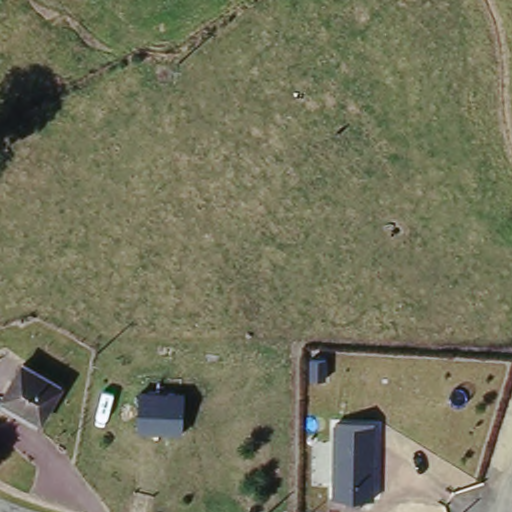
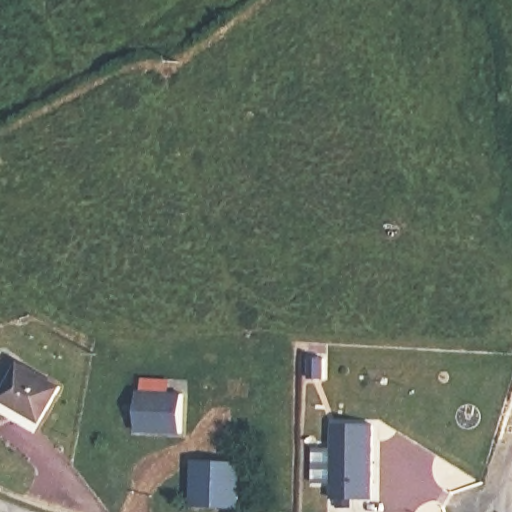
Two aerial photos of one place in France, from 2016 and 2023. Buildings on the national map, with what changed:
unchanged [(24,365),(63,385),(43,423),(3,402),(24,365)]
unchanged [(183,434),(137,432),(139,390),(184,393),(183,434)]
unchanged [(381,424),(380,497),(333,495),(334,423),(381,424)]
new [(243,510),(191,507),(193,458),(245,463),(243,510)]

